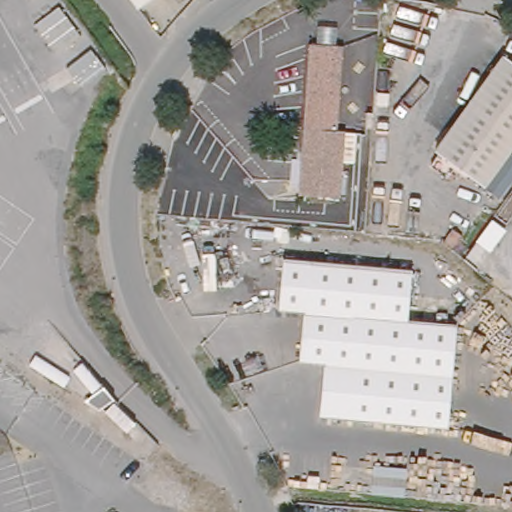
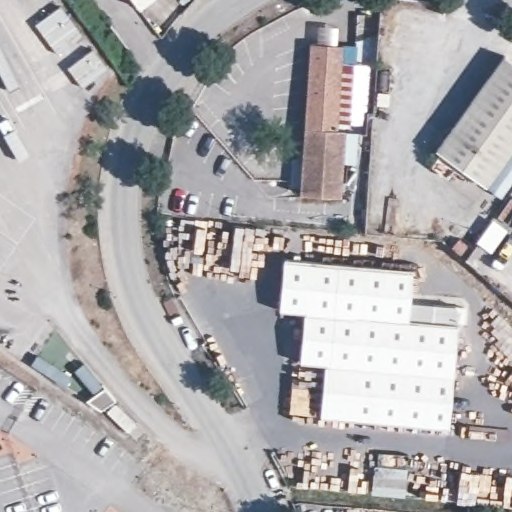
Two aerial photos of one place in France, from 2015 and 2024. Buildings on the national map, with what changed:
unchanged [(132,0),(146,0),(138,6),(132,0)]
unchanged [(349,128),(345,199),(304,195),(311,43),(343,45),(339,127),(349,128)]
unchanged [(505,52),(512,58),(512,145),(485,181),(438,145),(505,52)]
unchanged [(365,265),(412,268),(408,318),(457,322),(449,427),(325,416),(329,365),(304,362),(308,312),(280,310),(285,258),(365,265)]

